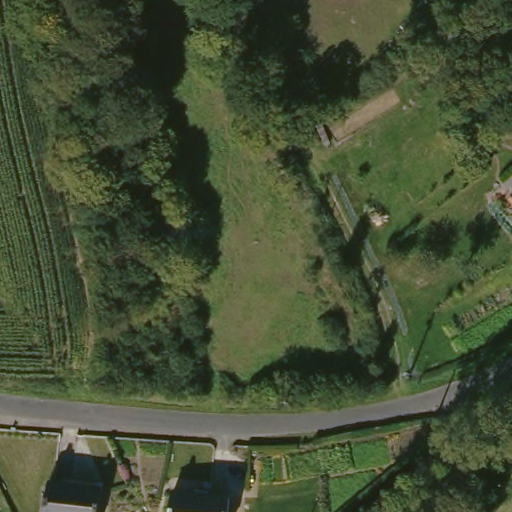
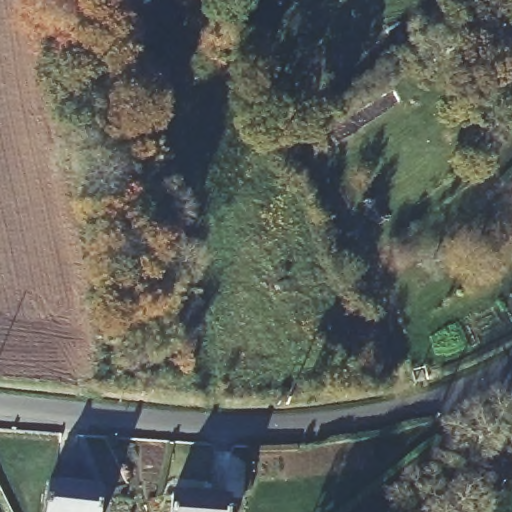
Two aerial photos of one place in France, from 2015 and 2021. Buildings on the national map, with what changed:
unchanged [(107,512),(53,512),(56,478),(110,486),(107,512)]
unchanged [(240,512),(181,512),(180,492),(239,490),(240,512)]

